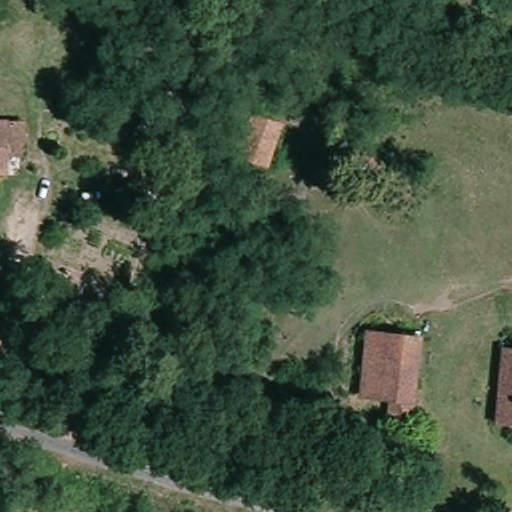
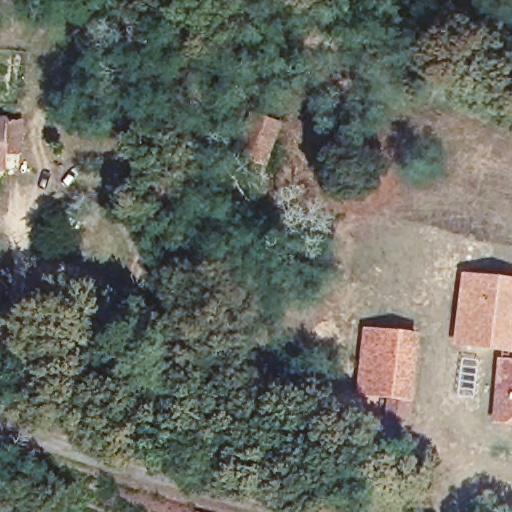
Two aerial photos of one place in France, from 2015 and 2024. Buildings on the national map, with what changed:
unchanged [(106,12),(71,0),(109,0),(106,12)]
unchanged [(280,114),(250,189),(223,179),(253,103),(280,114)]
unchanged [(4,120),(19,126),(15,162),(0,162),(0,177),(0,120),(4,120)]
new [(512,279),(512,353),(500,351),(455,346),(463,272),(512,279)]
unchanged [(0,302),(0,284),(2,284),(0,302)]
unchanged [(418,340),(407,426),(378,423),(379,405),(357,403),(367,332),(418,340)]
unchanged [(500,351),(512,353),(512,432),(491,429),(500,351)]

